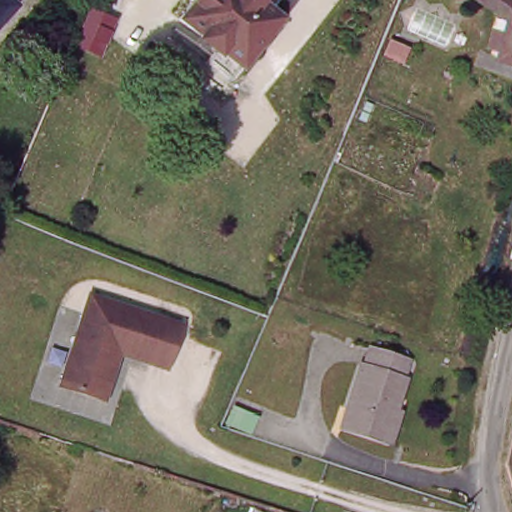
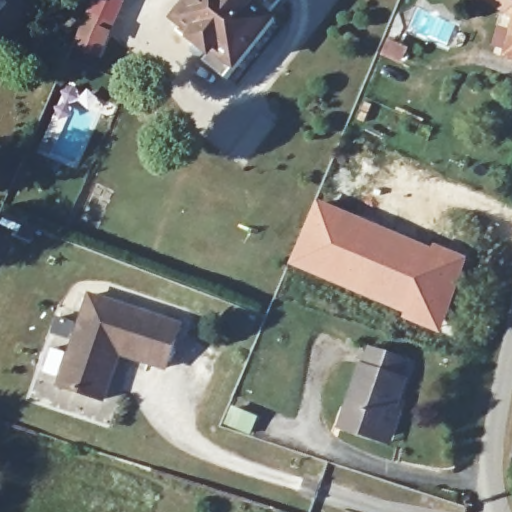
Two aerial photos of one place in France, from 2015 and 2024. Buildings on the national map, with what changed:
unchanged [(218,47),(188,21),(177,35),(169,29),(191,7),(192,0),(256,0),(279,19),(227,78),(207,60),(218,47)]
unchanged [(492,0),(512,0),(512,14),(492,0)]
unchanged [(0,16),(0,8),(4,11),(0,16)]
unchanged [(115,25),(103,57),(92,52),(101,30),(96,29),(100,19),(115,25)]
unchanged [(500,54),(512,21),(512,58),(500,54)]
new [(316,198),(432,246),(434,242),(470,256),(458,293),(441,334),(400,318),(402,314),(287,265),(316,198)]
unchanged [(162,382),(115,365),(97,411),(55,395),(88,306),(177,340),(162,382)]
unchanged [(388,441),(378,438),(340,425),(359,368),(362,369),(369,348),(405,360),(398,381),(402,382),(393,409),(398,411),(388,441)]

